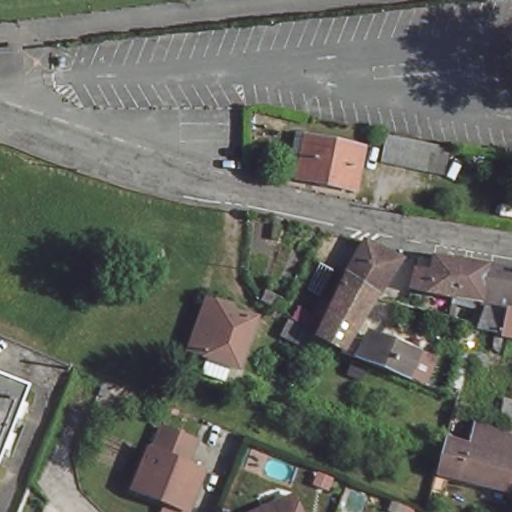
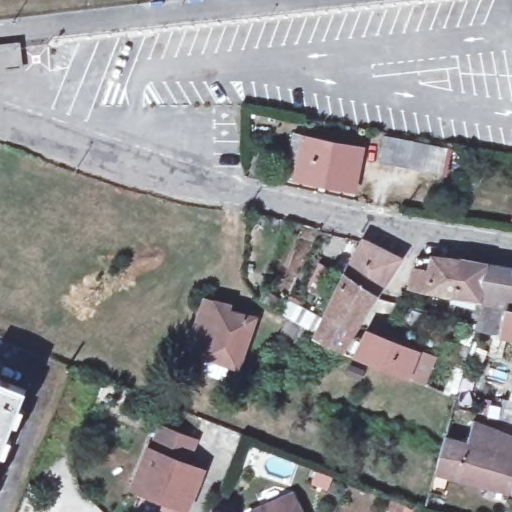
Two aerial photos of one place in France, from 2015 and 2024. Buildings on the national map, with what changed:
unchanged [(18,52),(18,72),(0,72),(0,51),(18,52)]
unchanged [(358,145),(349,187),(291,174),(299,133),(358,145)]
unchanged [(415,141),(449,149),(446,160),(443,175),(412,167),(384,161),(390,135),(415,141)]
unchanged [(313,321),(341,273),(368,237),(401,257),(376,295),(348,350),(311,326),(305,336),(305,337),(277,324),(285,308),(313,321)]
unchanged [(448,257),(454,258),(483,262),(512,267),(512,334),(477,327),(479,322),(485,303),(486,298),(483,297),(477,296),(451,291),(407,284),(413,255),(429,254),(448,257)]
unchanged [(326,271),(311,296),(299,289),(313,265),(326,271)]
unchanged [(221,376),(198,367),(201,358),(204,351),(186,344),(203,295),(225,301),(224,306),(249,315),(234,362),(227,360),(224,366),(221,376)]
unchanged [(373,332),(384,336),(424,352),(414,376),(363,355),(373,332)]
unchanged [(17,401),(0,441),(0,394),(17,401)]
unchanged [(474,423),(512,437),(512,479),(508,490),(479,477),(449,467),(444,483),(432,480),(440,453),(445,437),(467,445),(474,423)]
unchanged [(194,441),(186,465),(202,470),(196,490),(192,488),(188,500),(178,497),(167,503),(132,491),(147,451),(151,452),(160,429),(194,441)]
unchanged [(292,495),(299,512),(251,512),(292,495)]

